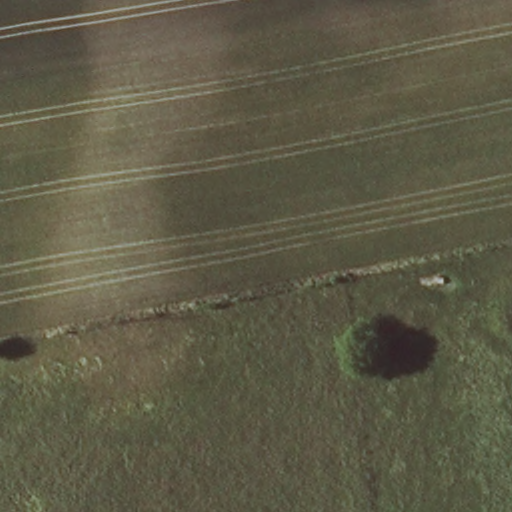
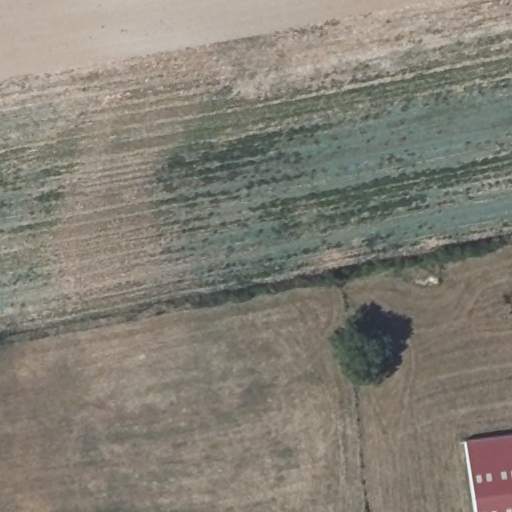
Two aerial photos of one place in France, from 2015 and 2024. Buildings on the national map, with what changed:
new [(512,434),(512,512),(476,512),(466,441),(512,434)]

